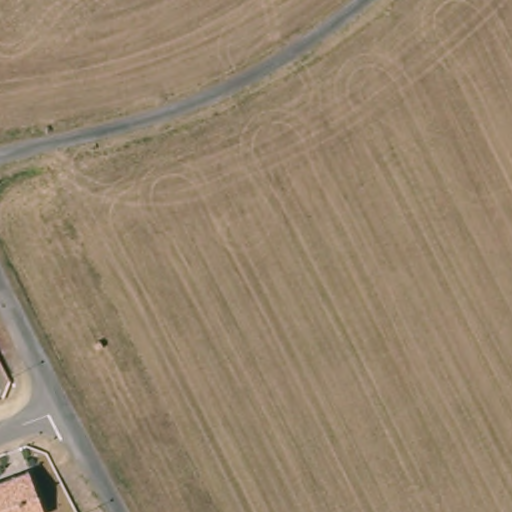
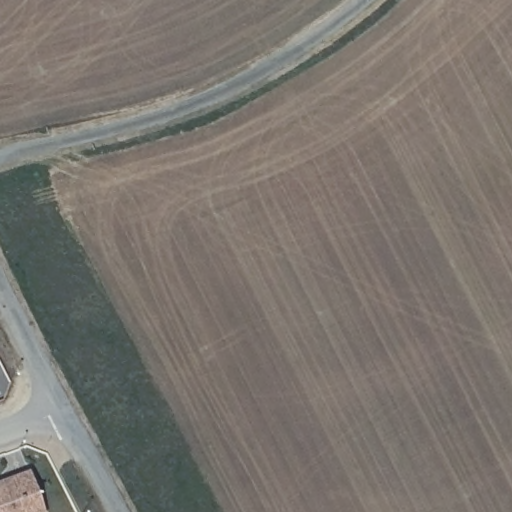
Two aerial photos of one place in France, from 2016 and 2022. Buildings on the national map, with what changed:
unchanged [(22,471),(37,512),(0,512),(0,480),(22,471)]

